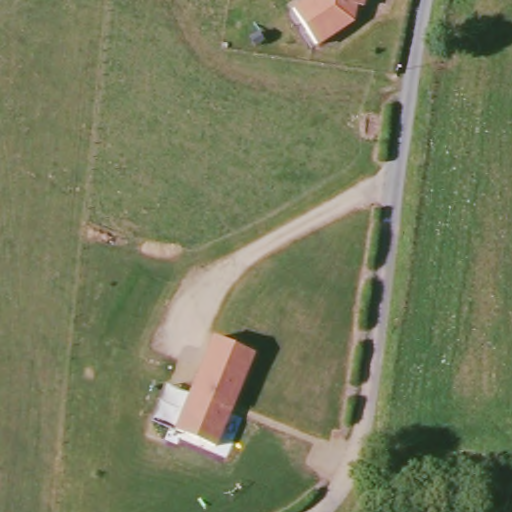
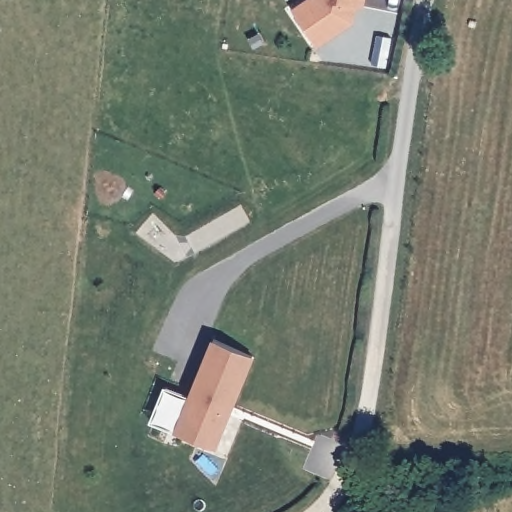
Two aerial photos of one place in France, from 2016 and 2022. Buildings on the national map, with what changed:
unchanged [(316,46),(292,10),(306,0),(356,0),(352,21),(316,46)]
unchanged [(253,354),(215,447),(176,431),(214,338),(253,354)]

